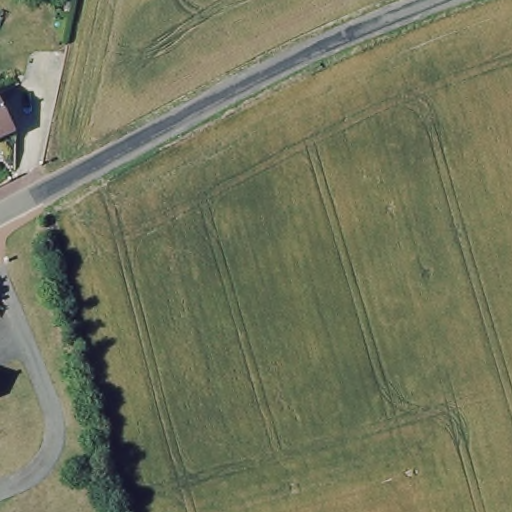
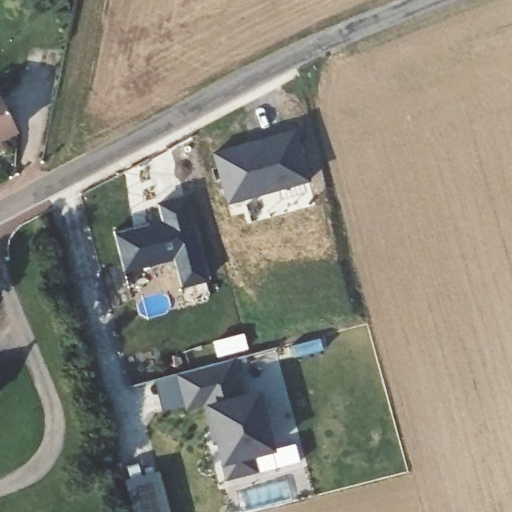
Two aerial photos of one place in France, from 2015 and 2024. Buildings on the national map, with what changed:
unchanged [(0,136),(0,95),(16,129),(0,136)]
new [(293,128),(310,181),(227,202),(212,154),(293,128)]
new [(160,221),(157,204),(185,195),(207,280),(180,287),(172,260),(123,273),(113,232),(160,221)]
new [(232,359),(242,395),(257,390),(274,453),(247,460),(251,474),(223,482),(202,405),(184,411),(175,375),(232,359)]
new [(153,380),(175,375),(182,406),(162,411),(153,380)]
new [(169,512),(130,512),(122,480),(159,472),(169,512)]

